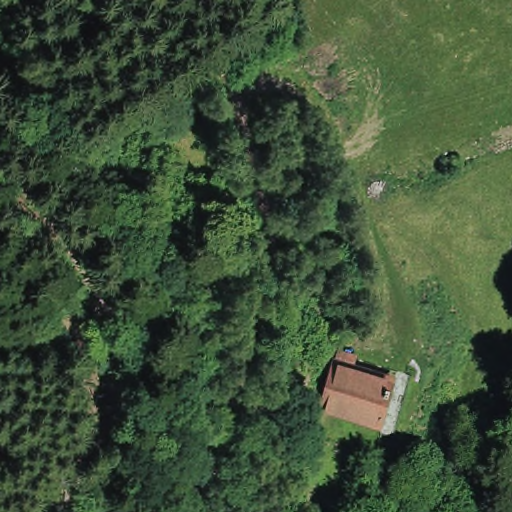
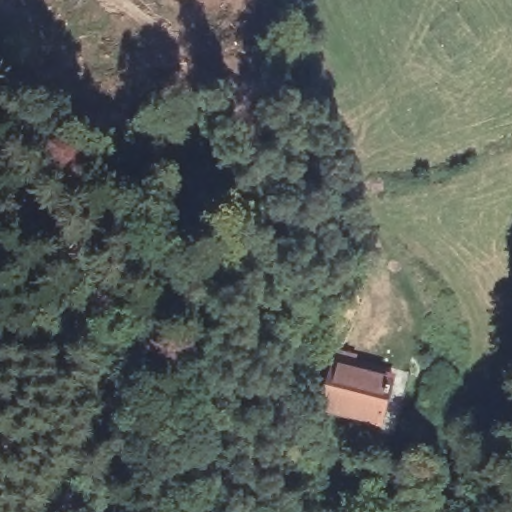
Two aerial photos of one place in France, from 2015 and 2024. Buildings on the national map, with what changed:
unchanged [(379,436),(367,432),(366,432),(369,423),(355,419),(307,405),(320,362),(321,360),(382,378),(385,367),(388,368),(399,372),(379,436)]

